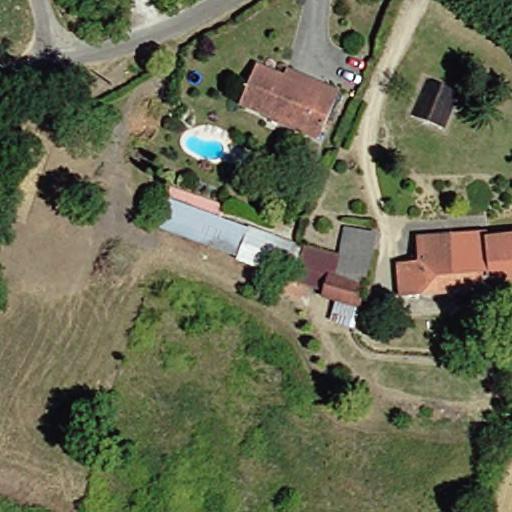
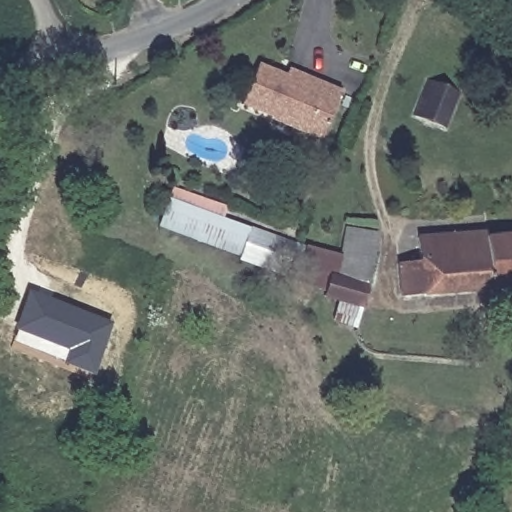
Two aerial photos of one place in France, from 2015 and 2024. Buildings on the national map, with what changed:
unchanged [(271,119),(273,113),(243,103),(254,68),(285,78),(288,71),(325,83),(340,88),(330,119),(324,137),(271,119)]
unchanged [(418,114),(434,81),(457,91),(465,95),(449,129),(447,128),(418,114)]
unchanged [(239,262),(159,228),(175,187),(224,207),(220,215),(305,248),(341,256),(348,227),(379,232),(366,305),(363,303),(356,326),(336,324),(339,301),(325,297),(326,291),(239,262)]
unchanged [(421,259),(420,236),(456,232),(486,230),(487,237),(496,236),(512,236),(512,288),(489,290),(404,297),(403,261),(421,259)]
new [(66,351),(14,330),(28,290),(113,322),(92,377),(61,365),(66,351)]

